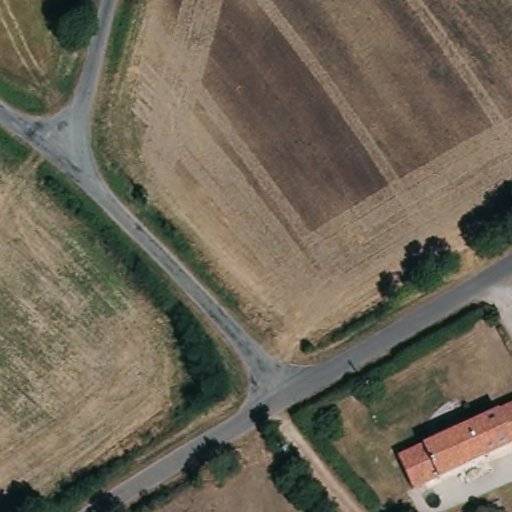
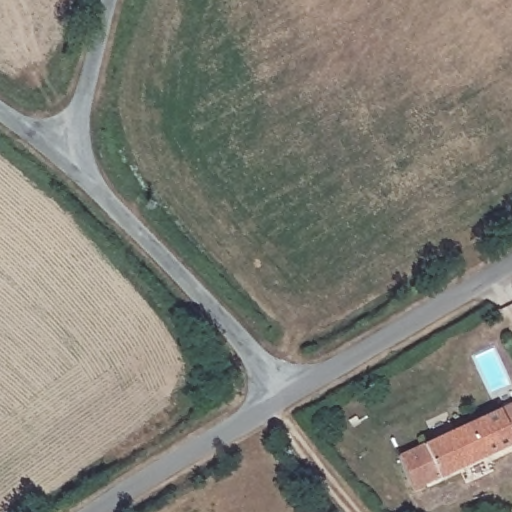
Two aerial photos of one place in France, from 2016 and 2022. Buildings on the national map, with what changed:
unchanged [(395,453),(512,403),(512,443),(410,486),(395,453)]

